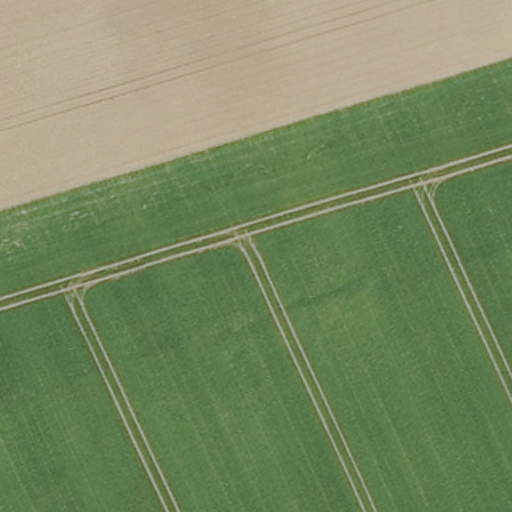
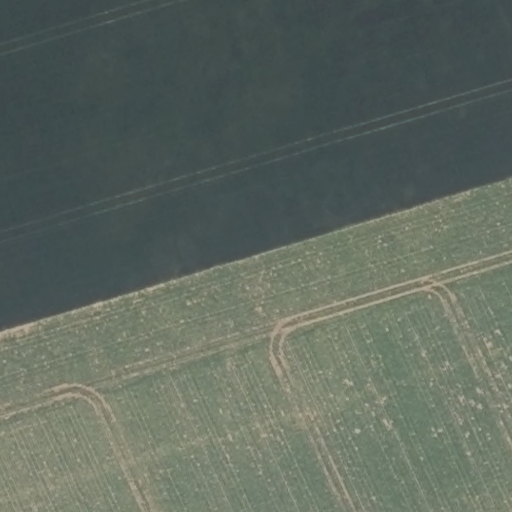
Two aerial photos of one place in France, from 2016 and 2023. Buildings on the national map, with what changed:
[]

